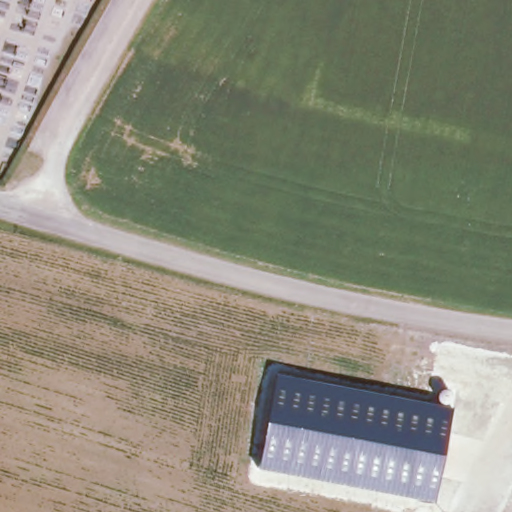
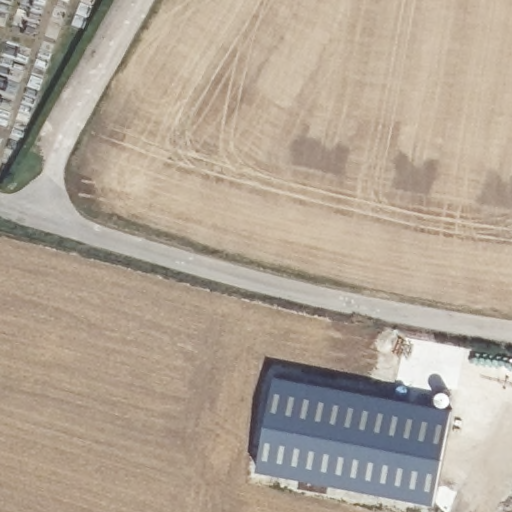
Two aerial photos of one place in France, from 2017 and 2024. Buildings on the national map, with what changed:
unchanged [(454,408),(436,504),(259,470),(277,374),(454,408)]

